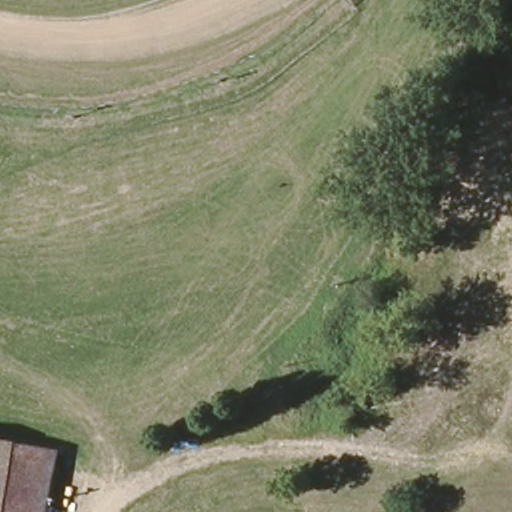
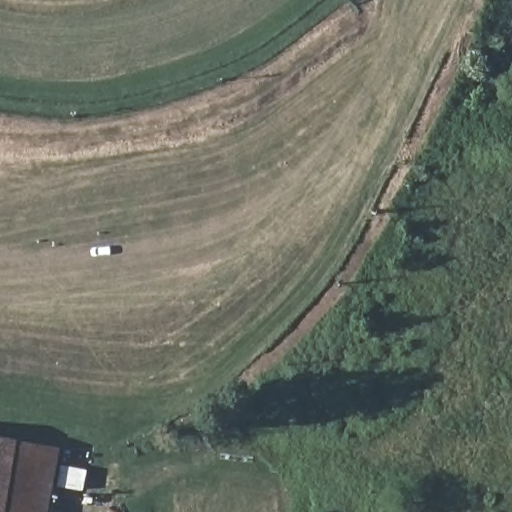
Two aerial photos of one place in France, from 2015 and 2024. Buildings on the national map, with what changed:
unchanged [(17,449),(7,512),(0,512),(0,446),(17,449)]
unchanged [(17,449),(59,456),(51,512),(7,512),(17,449)]

